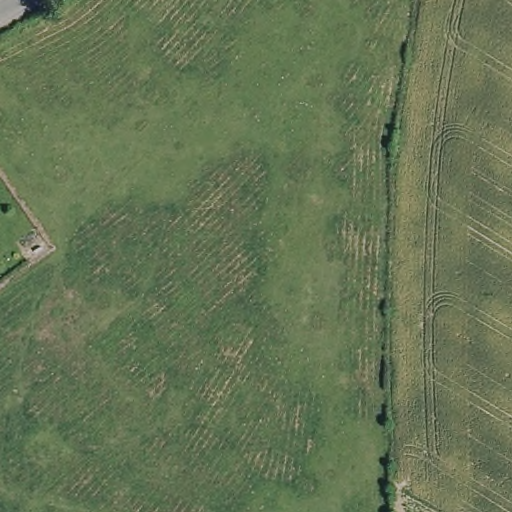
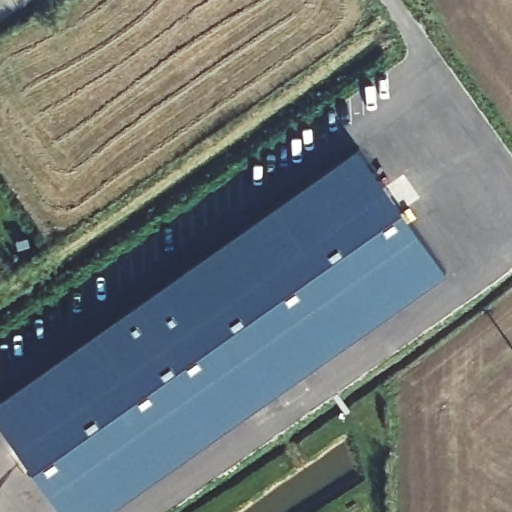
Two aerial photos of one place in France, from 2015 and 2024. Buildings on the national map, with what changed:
new [(444,274),(103,512),(60,512),(0,426),(0,401),(358,151),(444,274)]

